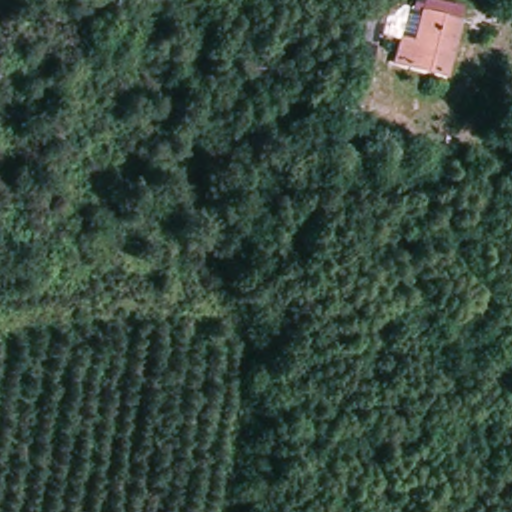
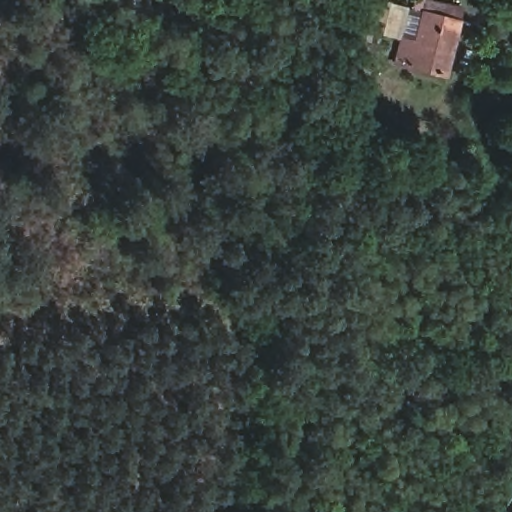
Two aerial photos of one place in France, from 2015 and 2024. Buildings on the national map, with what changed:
unchanged [(341,23),(345,0),(370,0),(368,25),(341,23)]
unchanged [(405,4),(403,32),(380,30),(381,3),(405,4)]
unchanged [(458,17),(451,77),(401,70),(413,14),(458,17)]

